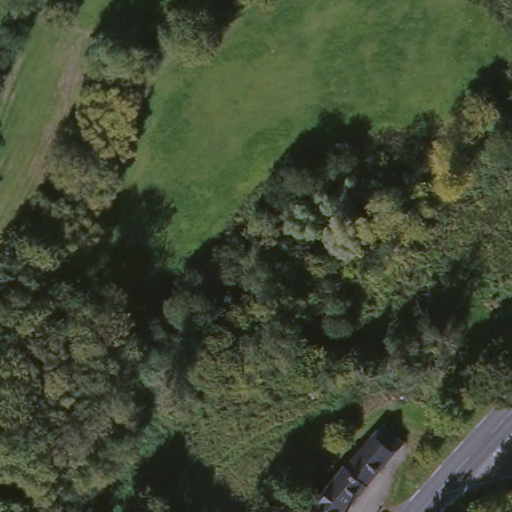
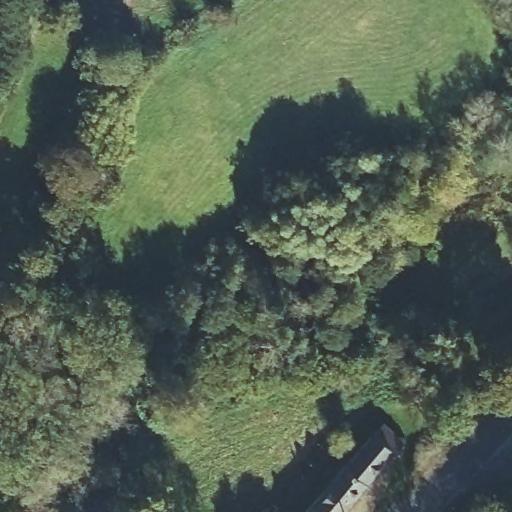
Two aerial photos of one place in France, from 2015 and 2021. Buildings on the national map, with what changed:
unchanged [(349,512),(300,512),(299,511),(336,470),(341,474),(377,433),(398,453),(383,471),(349,512)]
unchanged [(300,512),(299,512),(299,511),(300,512)]

